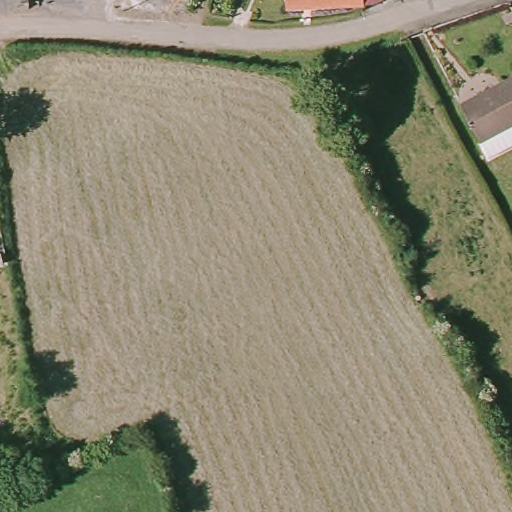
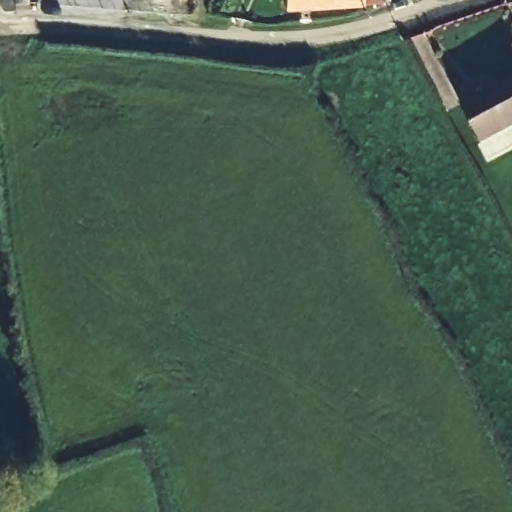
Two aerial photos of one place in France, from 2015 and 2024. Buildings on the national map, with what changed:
unchanged [(380,12),(363,17),(362,14),(283,15),(283,0),(379,0),(380,12)]
unchanged [(458,99),(512,71),(512,140),(487,152),(458,99)]

